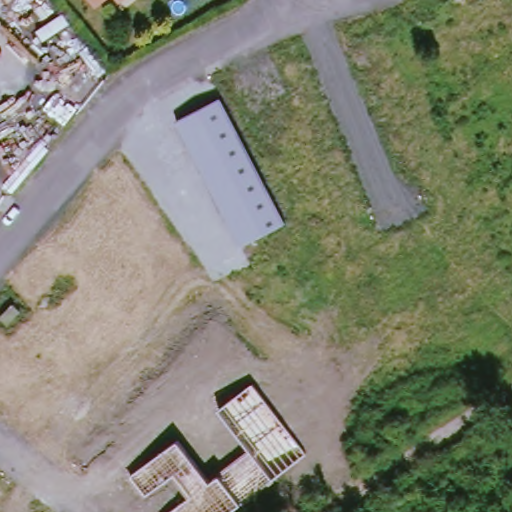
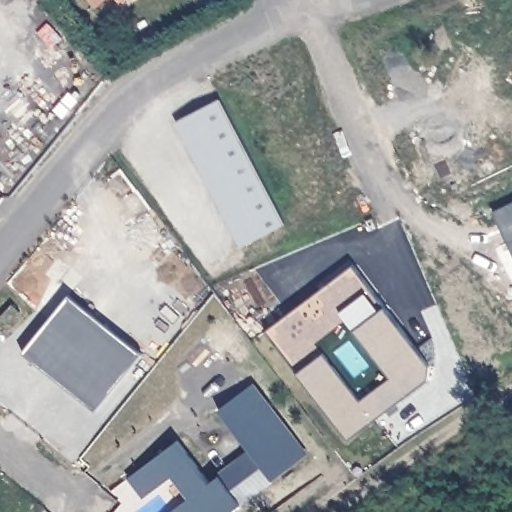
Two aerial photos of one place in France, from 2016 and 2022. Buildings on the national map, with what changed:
unchanged [(98,0),(109,0),(102,5),(98,0)]
unchanged [(126,0),(124,2),(122,0),(126,0)]
unchanged [(284,224),(239,245),(175,122),(220,99),(284,224)]
new [(512,254),(492,211),(512,202),(512,254)]
new [(354,264),(385,307),(429,366),(427,378),(349,439),(299,372),(266,331),(354,264)]
new [(70,295),(144,354),(97,412),(23,352),(70,295)]
unchanged [(17,300),(24,307),(11,320),(4,312),(17,300)]
unchanged [(177,441),(206,478),(247,448),(219,411),(252,384),(305,453),(239,502),(242,506),(234,512),(168,512),(189,498),(172,475),(145,495),(130,474),(177,441)]

